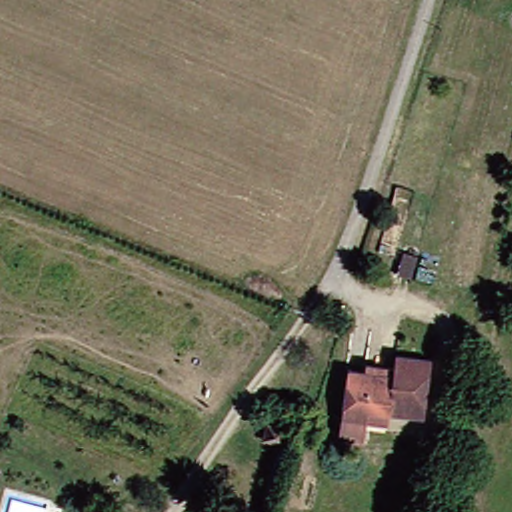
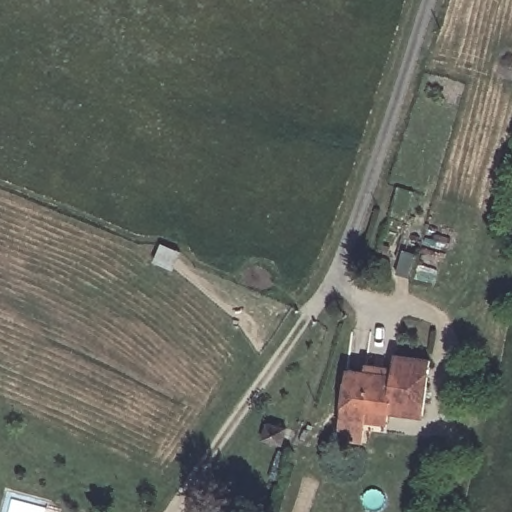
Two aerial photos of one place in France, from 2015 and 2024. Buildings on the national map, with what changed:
unchanged [(358,361),(402,371),(407,351),(439,358),(426,416),(373,402),(369,416),(346,410),(358,361)]
unchanged [(277,426),(297,430),(293,445),(274,441),(277,426)]

